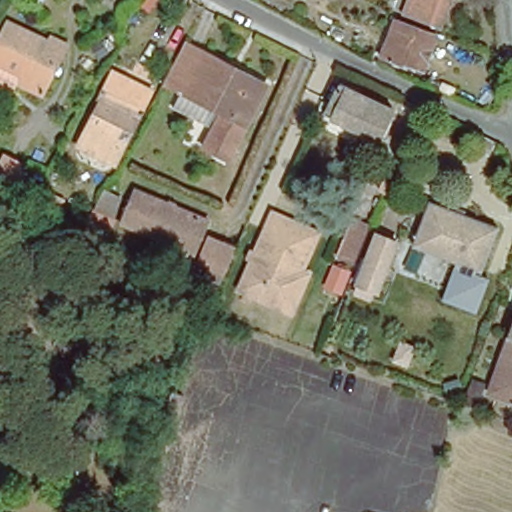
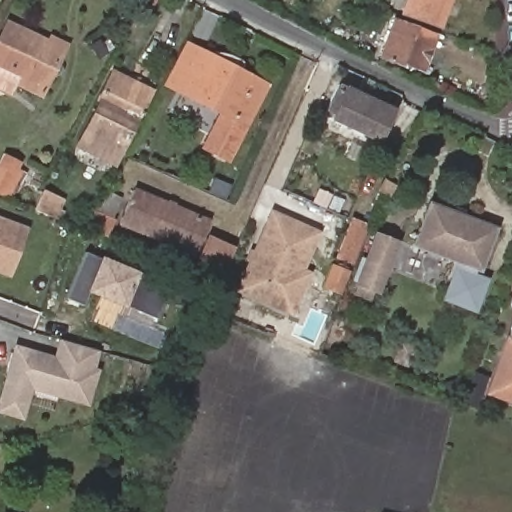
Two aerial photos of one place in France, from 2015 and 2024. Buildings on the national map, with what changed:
unchanged [(445,31),(408,18),(415,0),(456,0),(445,31)]
unchanged [(62,72),(61,77),(57,78),(52,76),(44,94),(19,82),(12,96),(0,90),(0,35),(7,21),(51,42),(54,36),(68,43),(66,49),(57,67),(62,69),(62,72)]
unchanged [(436,36),(423,68),(407,62),(406,66),(382,57),(396,22),(436,36)]
unchanged [(100,41),(107,53),(99,57),(92,46),(100,41)]
unchanged [(228,159),(204,147),(214,127),(175,106),(181,93),(161,83),(182,43),(201,53),(264,86),(228,159)]
unchanged [(115,165),(79,147),(102,100),(100,98),(112,73),(151,93),(115,165)]
unchanged [(377,141),(332,119),(333,116),(325,112),(336,90),(343,93),(346,89),(392,111),(377,141)]
unchanged [(17,163),(14,171),(23,175),(14,194),(0,188),(0,166),(4,157),(17,163)]
unchanged [(392,184),(388,195),(383,193),(380,191),(384,180),(392,184)]
unchanged [(38,189),(32,203),(19,197),(27,183),(38,189)]
unchanged [(32,211),(43,191),(63,200),(54,220),(32,211)]
unchanged [(205,221),(193,253),(122,224),(135,192),(205,221)]
unchanged [(481,271),(477,269),(475,273),(489,279),(476,312),(443,299),(458,261),(415,244),(430,206),(497,232),(481,271)]
unchanged [(245,276),(272,216),(317,237),(301,273),(307,276),(290,315),(270,306),(237,291),(245,276)]
unchanged [(84,233),(92,218),(107,225),(100,240),(84,233)]
new [(0,271),(0,220),(26,230),(9,274),(0,271)]
unchanged [(367,227),(352,262),(339,257),(353,221),(367,227)]
unchanged [(395,242),(373,298),(355,291),(377,235),(395,242)]
unchanged [(221,279),(194,267),(204,244),(231,256),(221,279)]
new [(83,252),(170,288),(157,319),(137,311),(140,306),(125,300),(122,305),(99,295),(101,290),(90,286),(81,305),(64,298),(83,252)]
unchanged [(342,279),(336,297),(322,292),(329,273),(342,279)]
unchanged [(220,281),(216,291),(204,286),(209,276),(220,281)]
unchanged [(491,393),(512,336),(512,401),(491,393)]
unchanged [(401,338),(416,344),(406,367),(391,360),(401,338)]
new [(55,361),(60,342),(96,352),(91,371),(95,373),(86,405),(29,388),(20,419),(0,413),(0,399),(15,349),(55,361)]
unchanged [(470,382),(471,381),(482,385),(474,406),(462,402),(470,382)]

